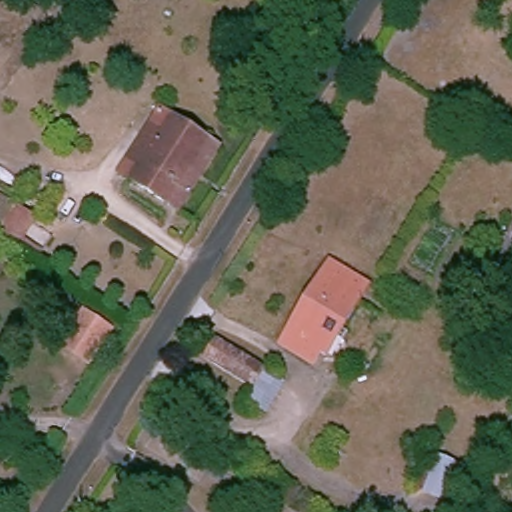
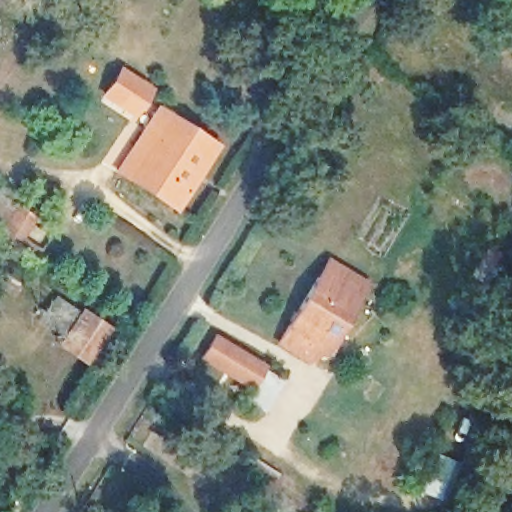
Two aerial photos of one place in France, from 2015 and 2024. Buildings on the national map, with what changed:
new [(132,111),(130,114),(102,97),(121,67),(155,89),(139,115),(132,111)]
unchanged [(160,202),(111,172),(151,107),(165,116),(201,137),(160,202)]
unchanged [(172,209),(160,202),(201,137),(212,144),(172,209)]
unchanged [(0,238),(0,213),(6,203),(25,214),(7,243),(0,238)]
unchanged [(311,347),(302,360),(272,339),(316,277),(323,265),(360,292),(353,303),(336,328),(318,352),(311,347)]
unchanged [(81,372),(45,348),(75,299),(114,324),(81,372)]
unchanged [(210,334),(262,365),(264,357),(280,366),(260,416),(239,408),(245,390),(198,361),(210,334)]
unchanged [(430,450),(461,468),(445,504),(411,485),(430,450)]

